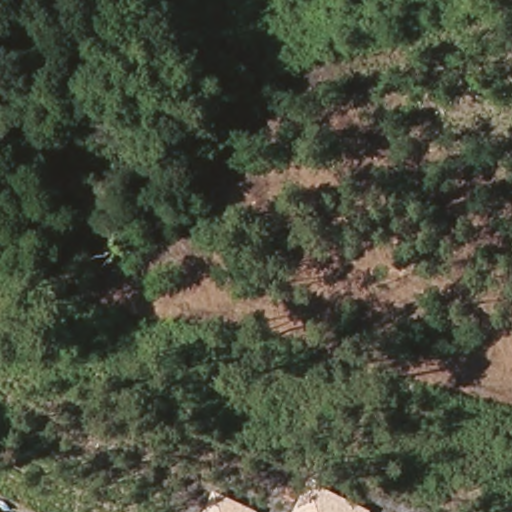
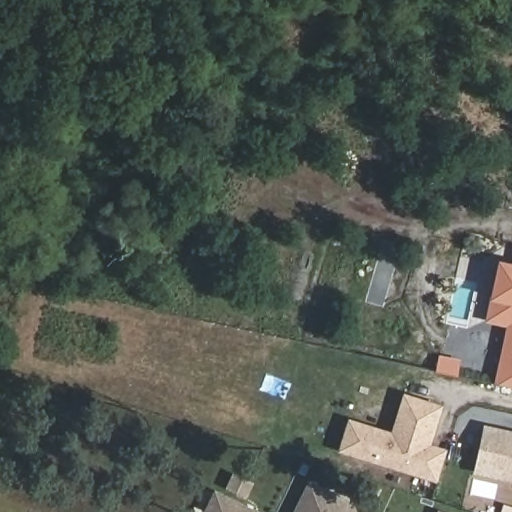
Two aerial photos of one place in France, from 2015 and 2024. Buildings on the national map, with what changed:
new [(503,292),(512,293),(512,350),(505,348),(498,379),(495,378),(506,327),(484,322),(491,299),(498,260),(512,263),(512,269),(507,268),(503,292)]
new [(512,269),(512,293),(503,292),(507,268),(512,269)]
new [(512,350),(512,382),(498,379),(505,348),(512,350)]
new [(443,406),(431,445),(447,450),(437,482),(337,452),(348,419),(391,432),(402,393),(443,406)]
new [(512,432),(512,477),(482,471),(491,427),(512,432)]
unchanged [(293,512),(308,481),(372,511),(372,512),(293,512)]
unchanged [(258,512),(205,512),(216,491),(258,512)]

